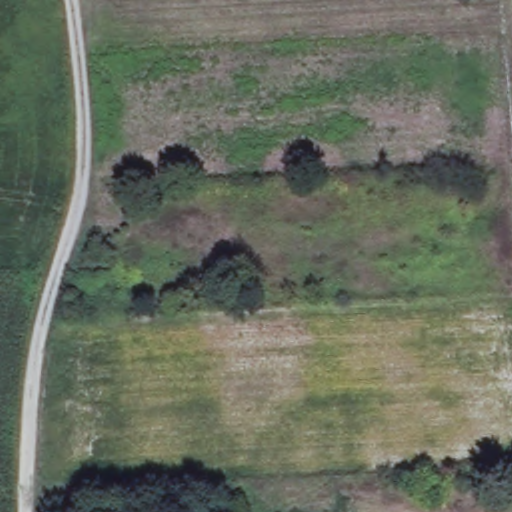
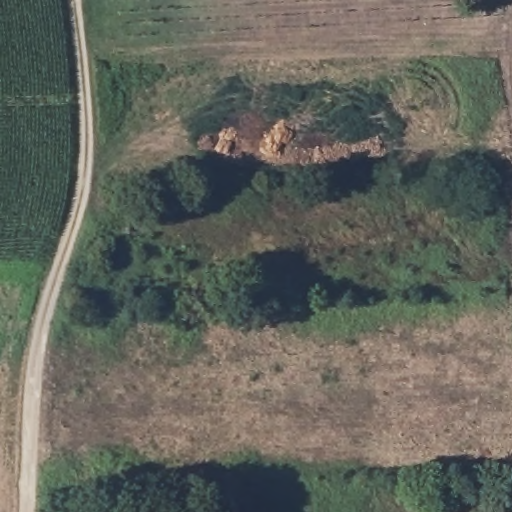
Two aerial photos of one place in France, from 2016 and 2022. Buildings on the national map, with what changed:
unchanged [(215,295),(199,296),(198,276),(215,274),(215,295)]

